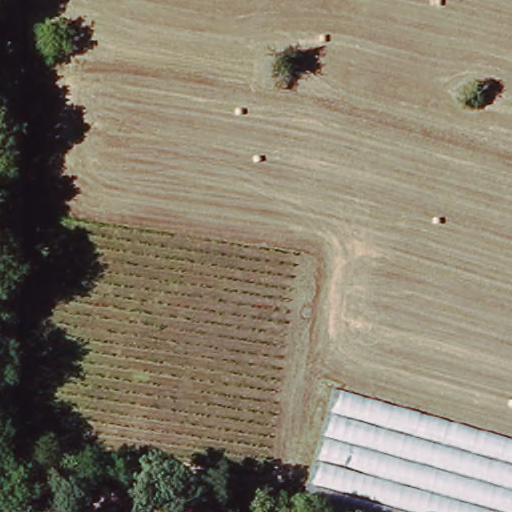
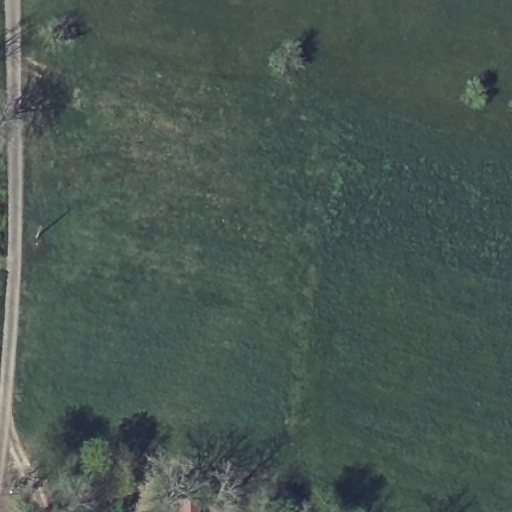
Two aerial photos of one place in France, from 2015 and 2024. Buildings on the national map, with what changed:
demolished [(336,390),(512,440),(512,512),(324,512),(304,506),(336,390)]

